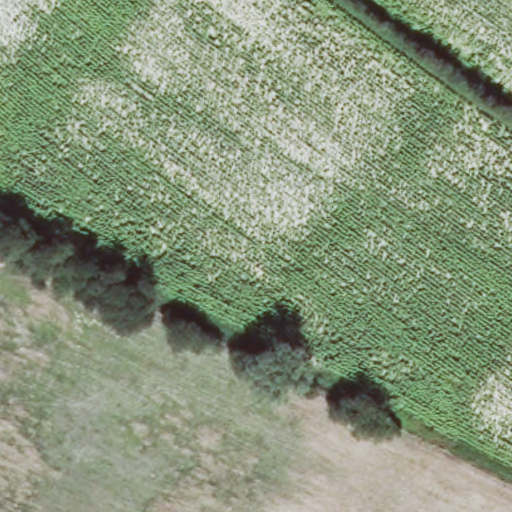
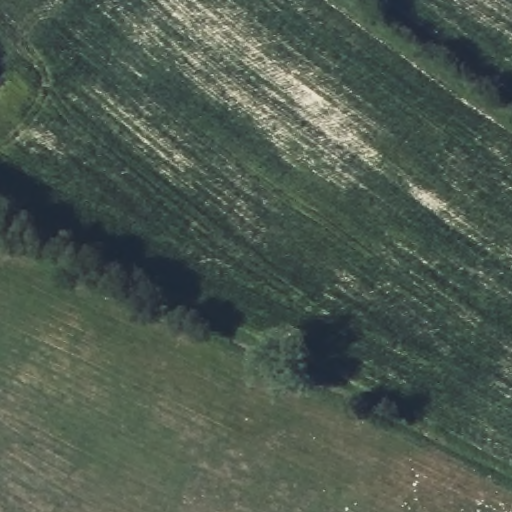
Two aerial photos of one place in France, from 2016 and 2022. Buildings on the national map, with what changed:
[]

